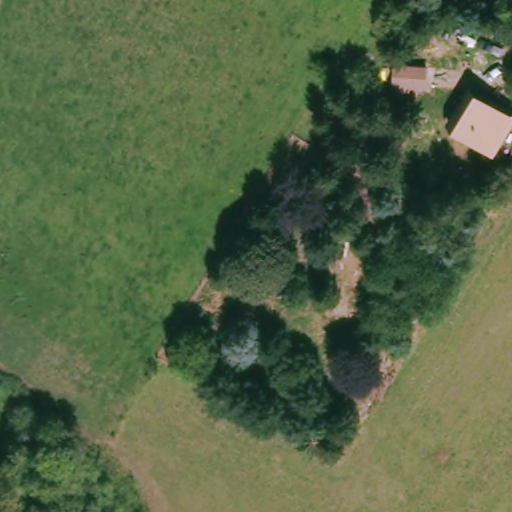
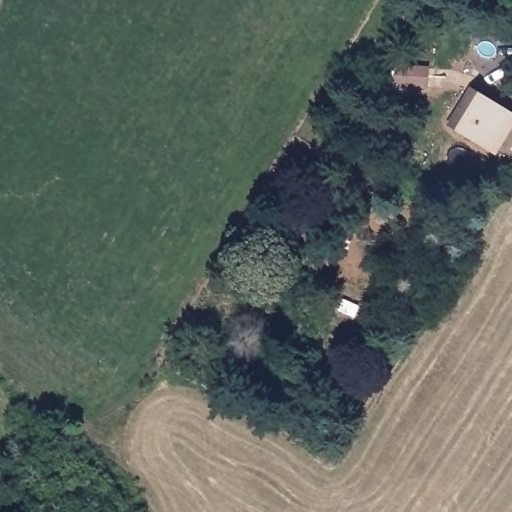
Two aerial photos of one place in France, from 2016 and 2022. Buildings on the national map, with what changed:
unchanged [(428,65),(427,87),(393,85),(394,63),(428,65)]
unchanged [(512,113),(512,140),(503,155),(486,146),(485,149),(444,124),(467,85),(512,113)]

